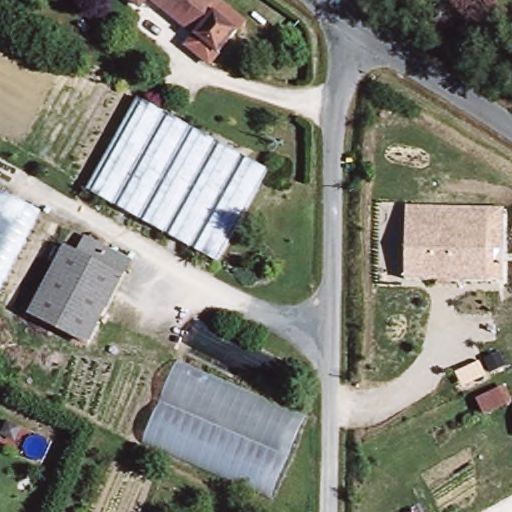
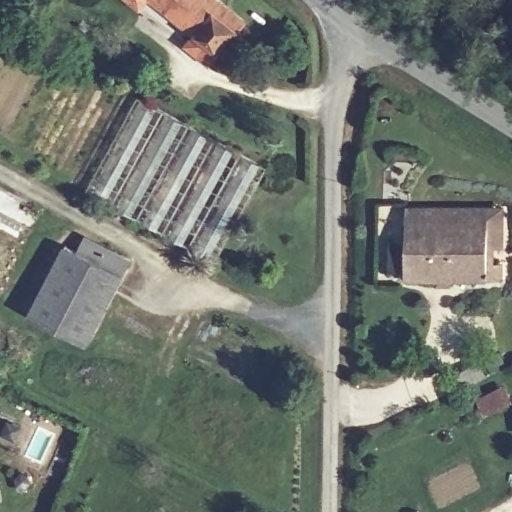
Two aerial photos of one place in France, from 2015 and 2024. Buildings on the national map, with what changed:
unchanged [(163,0),(227,0),(243,12),(209,54),(182,32),(189,22),(163,0)]
unchanged [(132,95),(258,160),(210,251),(84,187),(132,95)]
unchanged [(0,270),(0,187),(34,203),(0,270)]
unchanged [(488,206),(489,281),(407,280),(408,205),(488,206)]
unchanged [(78,247),(85,235),(129,257),(86,337),(30,308),(65,241),(78,247)]
demolished [(131,442),(166,359),(296,415),(263,498),(131,442)]
unchanged [(476,397),(503,382),(512,400),(512,402),(484,416),(476,397)]

